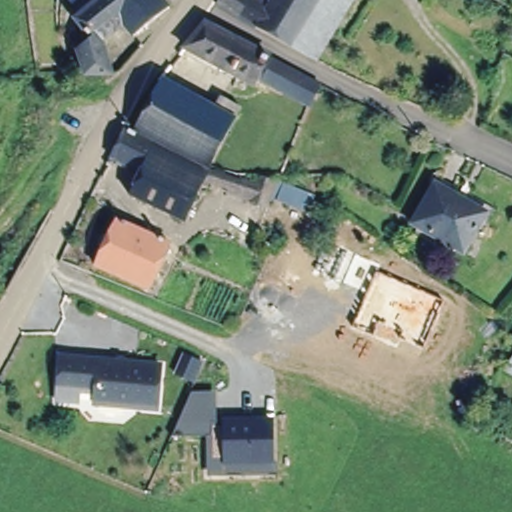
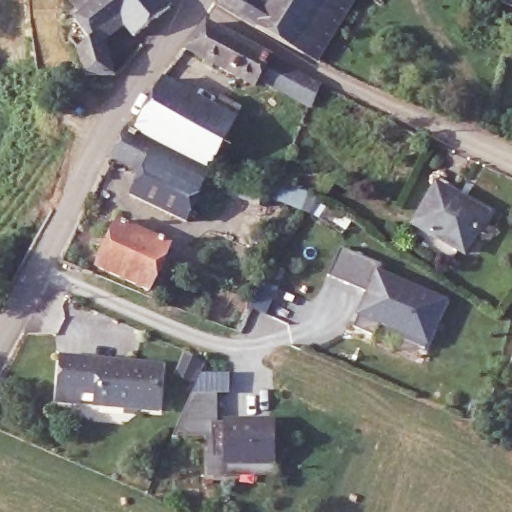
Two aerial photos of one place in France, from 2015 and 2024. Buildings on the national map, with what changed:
unchanged [(69,37),(75,31),(69,18),(91,0),(158,0),(161,4),(130,37),(118,25),(101,39),(110,73),(90,73),(69,37)]
unchanged [(267,0),(272,2),(274,0),(345,0),(315,60),(288,43),(220,7),(224,0),(267,0)]
unchanged [(180,47),(204,21),(315,82),(304,106),(250,74),(245,84),(235,78),(180,47)]
unchanged [(127,130),(159,78),(217,114),(226,97),(238,106),(202,174),(127,130)]
unchanged [(121,125),(127,130),(202,174),(193,189),(172,227),(119,197),(131,170),(105,153),(121,125)]
unchanged [(273,181),(285,188),(272,218),(255,208),(266,181),(273,181)]
unchanged [(485,214),(460,250),(417,218),(440,183),(485,214)]
unchanged [(120,219),(172,241),(151,288),(99,265),(120,219)]
new [(381,276),(447,306),(425,353),(401,342),(404,336),(381,326),(375,339),(355,329),(370,295),(347,285),(331,277),(345,249),(360,257),(385,268),(381,276)]
new [(195,381),(190,378),(175,372),(184,354),(198,360),(203,362),(195,381)]
unchanged [(154,365),(150,408),(89,403),(89,391),(71,390),(71,400),(51,399),(55,356),(154,365)]
unchanged [(220,392),(220,423),(273,422),(274,462),(230,462),(230,475),(215,475),(214,437),(175,437),(194,395),(195,392),(220,392)]

